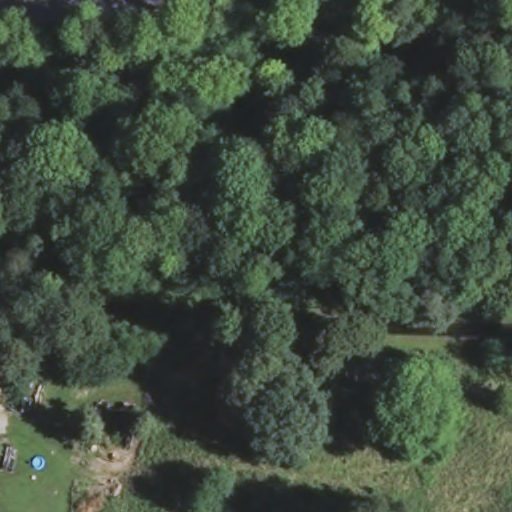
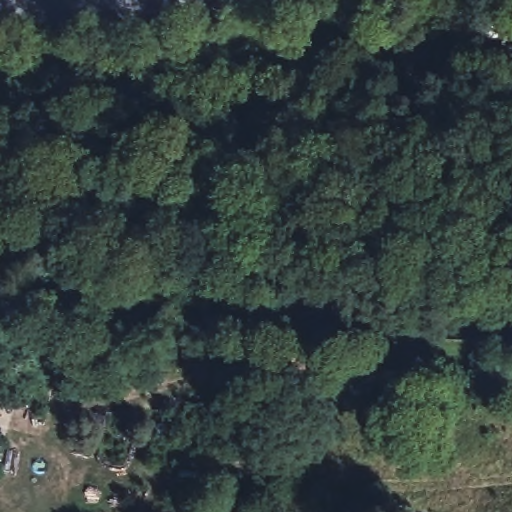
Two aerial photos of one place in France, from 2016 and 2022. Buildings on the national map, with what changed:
[]

